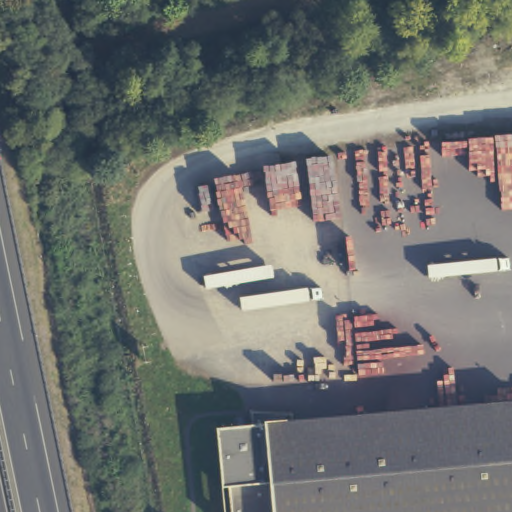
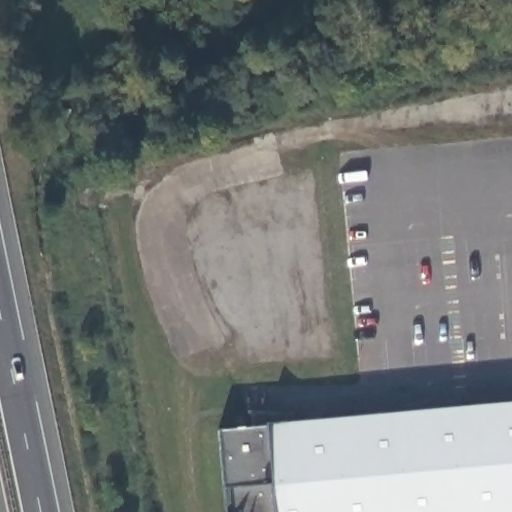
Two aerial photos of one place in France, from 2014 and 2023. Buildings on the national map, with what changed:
unchanged [(254,427),(253,413),(294,415),(293,419),(306,420),(306,422),(512,406),(512,512),(233,512),(232,491),(224,491),(220,430),(254,427)]

